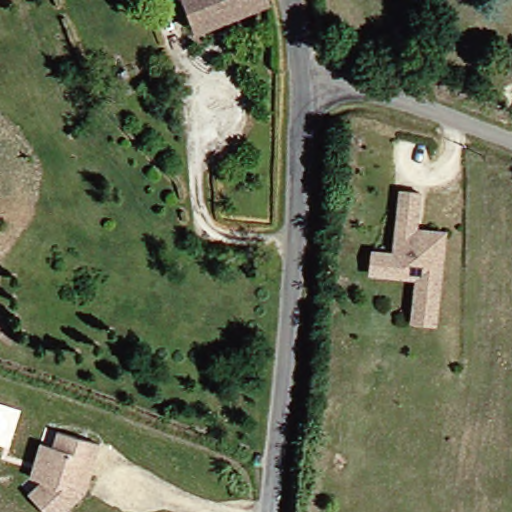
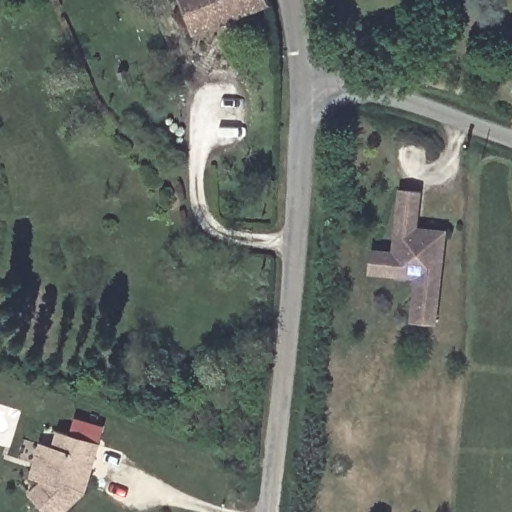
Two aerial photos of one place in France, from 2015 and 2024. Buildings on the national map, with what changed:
unchanged [(190,17),(186,0),(234,0),(190,17)]
unchanged [(197,35),(190,17),(234,0),(277,0),(278,2),(197,35)]
unchanged [(371,251),(386,253),(393,254),(400,187),(417,190),(413,229),(442,232),(432,326),(412,323),(418,276),(386,272),(370,271),(371,251)]
unchanged [(81,494),(64,512),(40,512),(25,497),(38,482),(27,480),(35,444),(48,449),(53,432),(95,443),(81,494)]

